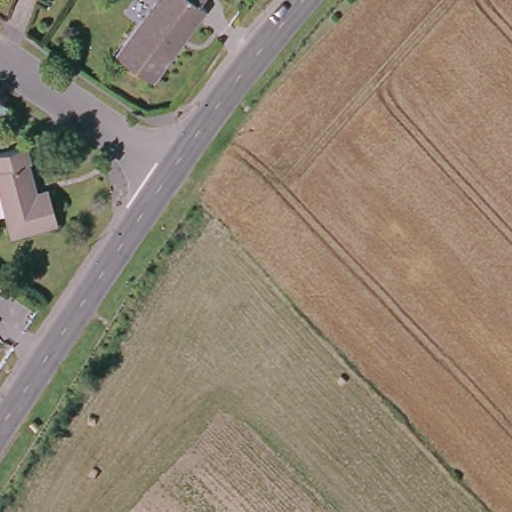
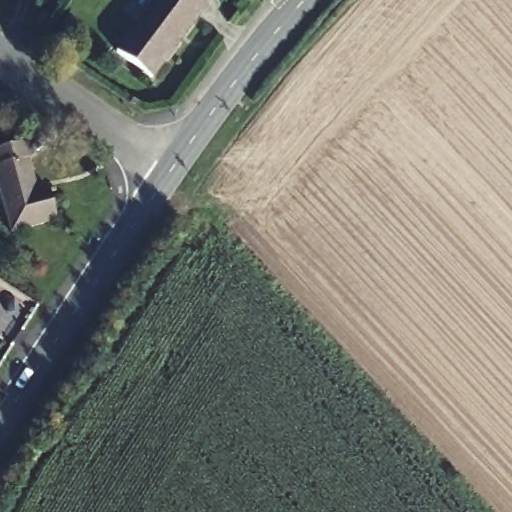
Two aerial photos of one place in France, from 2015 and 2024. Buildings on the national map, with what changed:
unchanged [(152,78),(117,52),(157,0),(202,0),(200,3),(205,7),(152,78)]
unchanged [(10,105),(0,119),(0,99),(10,105)]
unchanged [(12,233),(0,190),(0,151),(25,144),(30,160),(27,161),(35,192),(48,189),(57,220),(12,233)]

